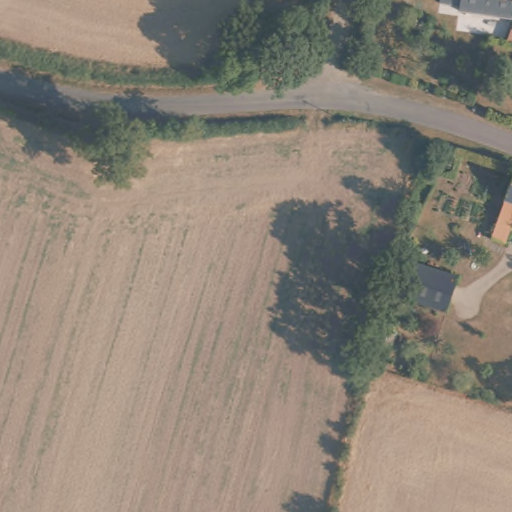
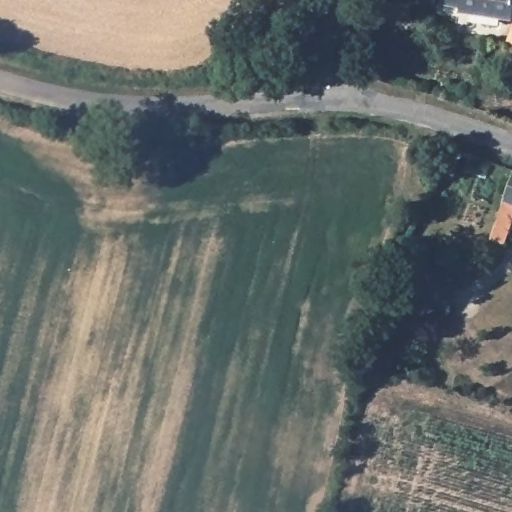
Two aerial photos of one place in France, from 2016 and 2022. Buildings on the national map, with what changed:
unchanged [(512,15),(511,17),(460,5),(461,0),(512,0),(512,15)]
unchanged [(440,137),(457,144),(447,170),(431,164),(427,175),(413,169),(425,134),(440,137)]
unchanged [(485,235),(511,170),(512,168),(512,218),(502,242),(496,258),(478,251),(485,235)]
unchanged [(463,257),(444,310),(396,290),(413,240),(463,257)]

